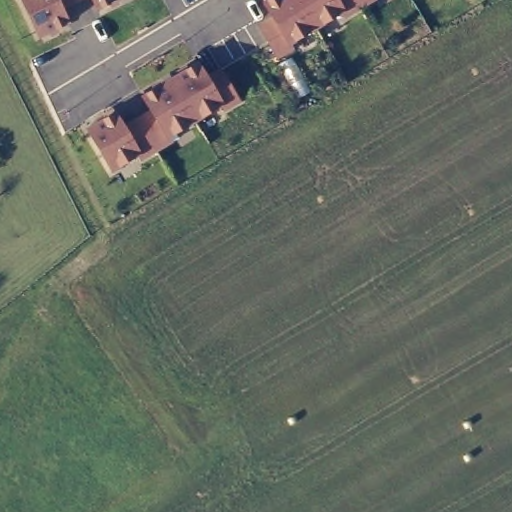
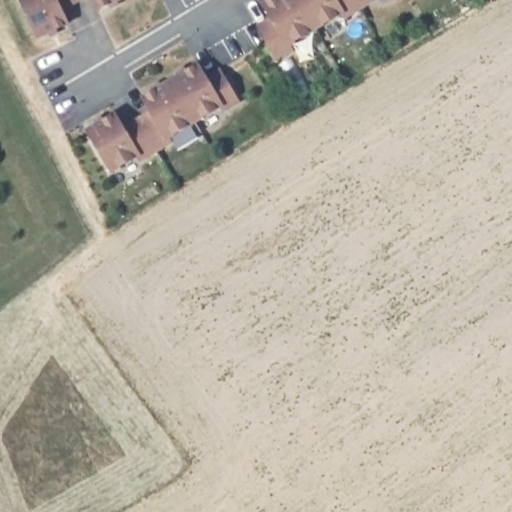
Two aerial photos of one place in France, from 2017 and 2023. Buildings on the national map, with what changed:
unchanged [(63,11),(70,26),(37,41),(18,0),(87,0),(63,11)]
unchanged [(96,12),(90,0),(120,0),(96,12)]
unchanged [(342,21),(340,16),(292,44),(297,54),(281,64),(255,27),(270,17),(262,3),(267,0),(374,0),(342,21)]
unchanged [(382,10),(375,0),(398,0),(382,10)]
unchanged [(222,115),(217,109),(171,136),(176,143),(140,166),(136,159),(112,174),(83,128),(116,111),(125,128),(150,112),(141,96),(197,61),(207,78),(222,68),(242,104),(222,115)]

